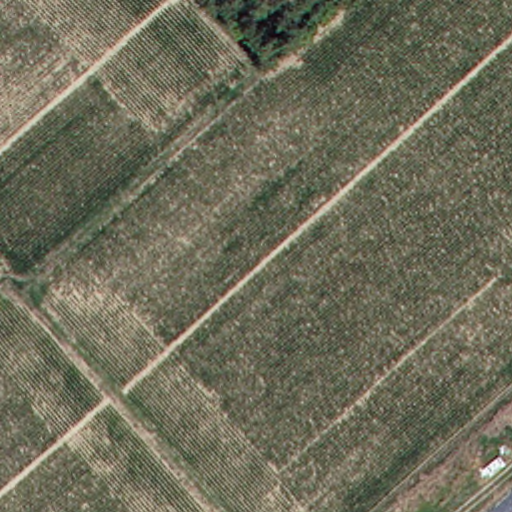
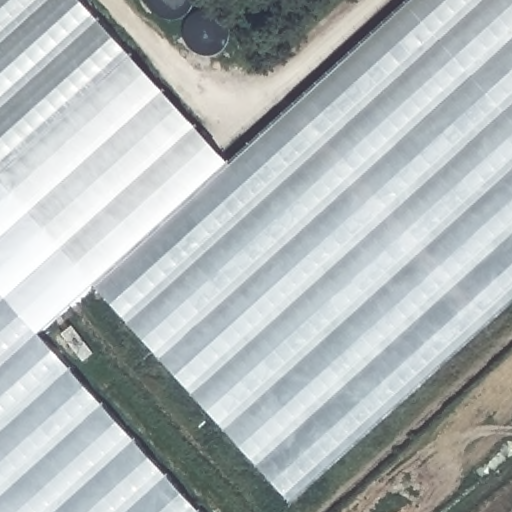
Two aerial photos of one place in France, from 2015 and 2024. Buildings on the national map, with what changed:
new [(0,512),(0,0),(80,0),(228,164),(93,285),(38,334),(199,512),(0,512)]
new [(228,164),(410,0),(512,0),(512,301),(290,501),(93,285),(228,164)]
demolished [(512,512),(476,512),(512,480),(512,512)]

